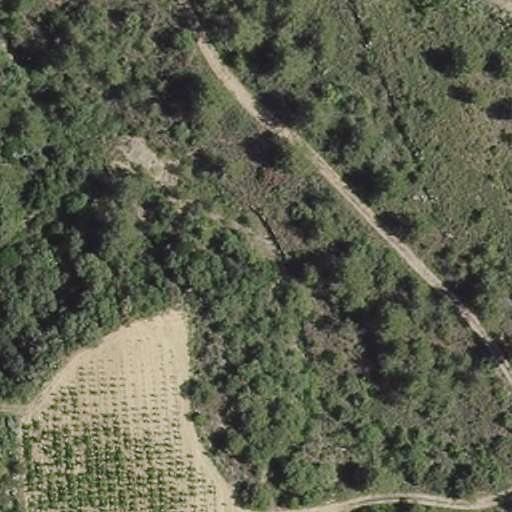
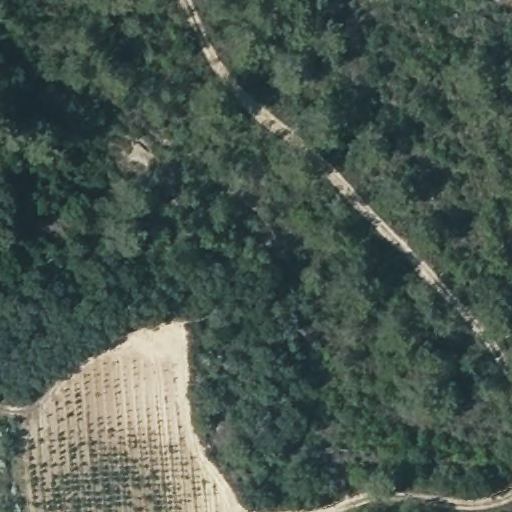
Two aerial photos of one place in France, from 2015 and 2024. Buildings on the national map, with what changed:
[]

